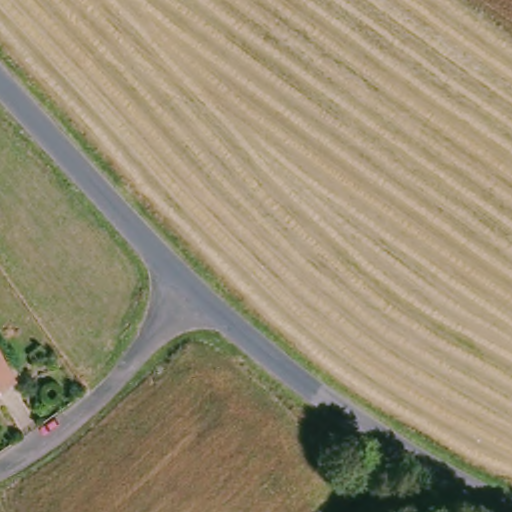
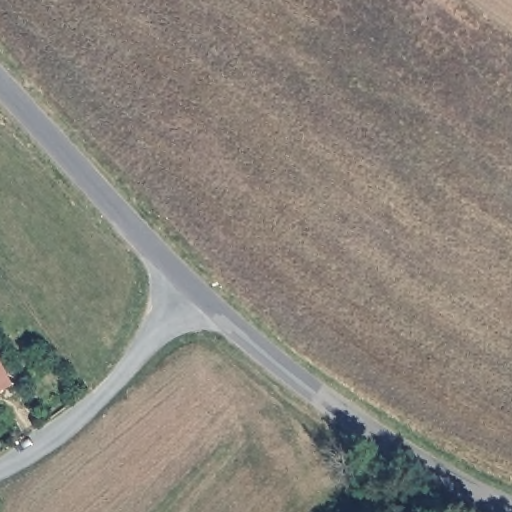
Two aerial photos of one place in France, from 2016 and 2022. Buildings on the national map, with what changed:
unchanged [(0,391),(0,356),(15,383),(0,391)]

